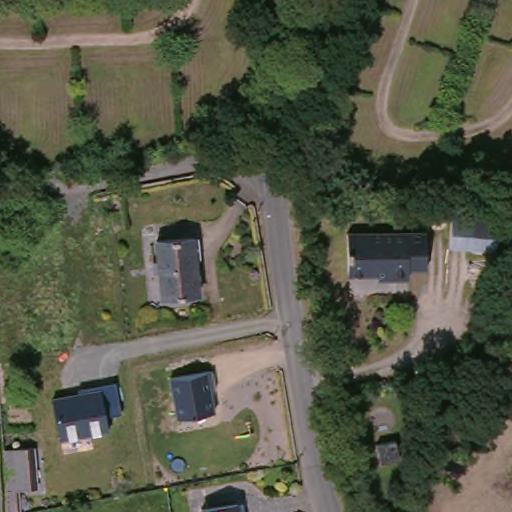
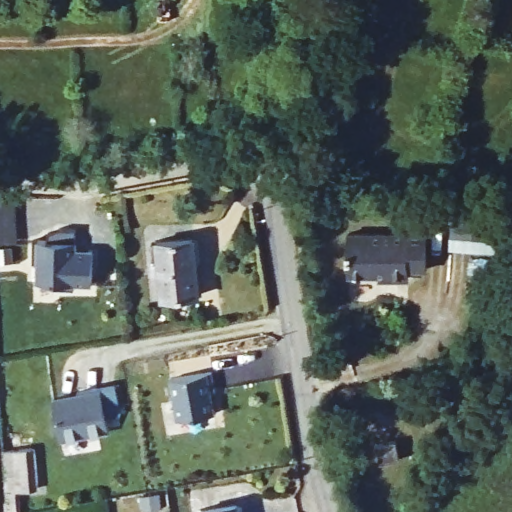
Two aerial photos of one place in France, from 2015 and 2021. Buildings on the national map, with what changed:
unchanged [(419,230),(419,265),(401,266),(401,272),(336,273),(337,232),(419,230)]
unchanged [(479,266),(434,261),(436,231),(481,236),(479,266)]
new [(33,243),(48,244),(48,236),(59,237),(59,232),(76,232),(76,253),(93,253),(92,287),(74,287),(74,293),(57,293),(57,287),(37,286),(38,267),(33,267),(33,243)]
unchanged [(191,239),(196,295),(164,299),(156,245),(191,239)]
unchanged [(178,420),(171,379),(208,371),(215,411),(178,420)]
unchanged [(59,443),(52,399),(79,393),(78,389),(114,382),(121,413),(107,417),(109,432),(59,443)]
unchanged [(404,460),(384,464),(383,444),(403,441),(404,460)]
unchanged [(8,448),(27,448),(27,489),(12,489),(11,512),(2,512),(2,489),(7,489),(8,448)]
new [(162,510),(149,512),(141,512),(139,499),(159,495),(162,510)]
unchanged [(236,512),(203,512),(236,506),(236,512)]

